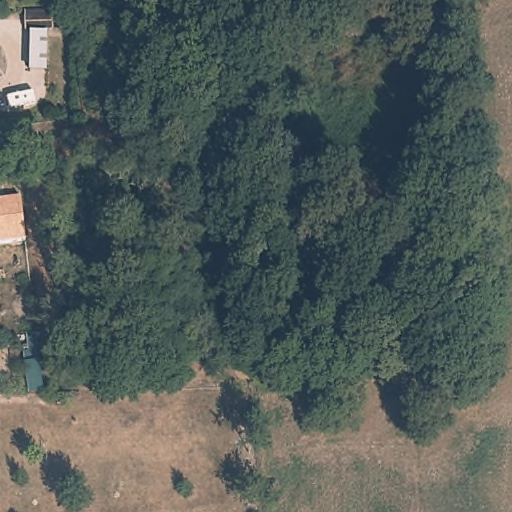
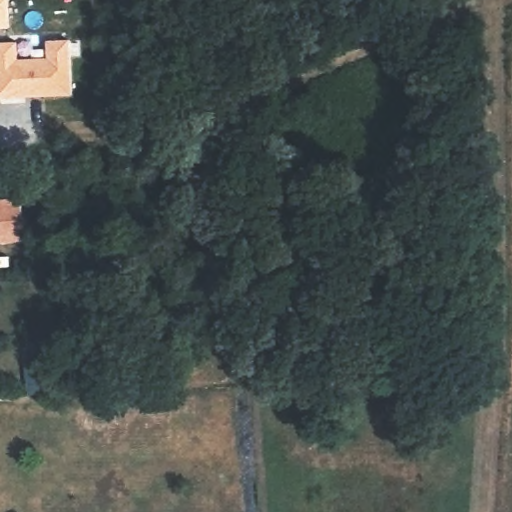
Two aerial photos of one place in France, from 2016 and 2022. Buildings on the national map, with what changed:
new [(9,30),(0,30),(0,0),(7,0),(9,30)]
new [(18,60),(48,58),(47,41),(70,40),(73,95),(0,99),(0,43),(18,42),(18,60)]
unchanged [(26,242),(0,244),(0,200),(21,198),(26,242)]
new [(29,396),(29,385),(27,335),(36,334),(42,382),(43,394),(29,396)]

